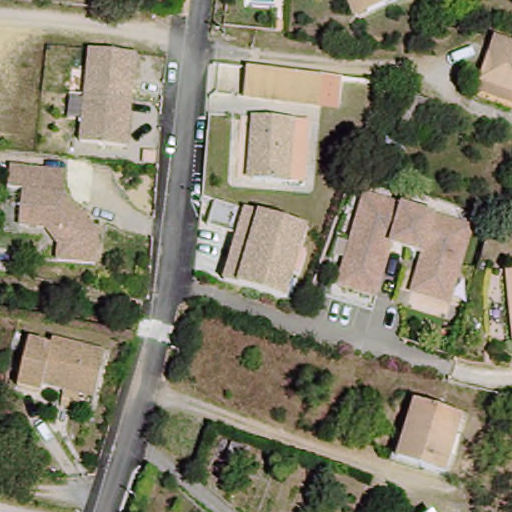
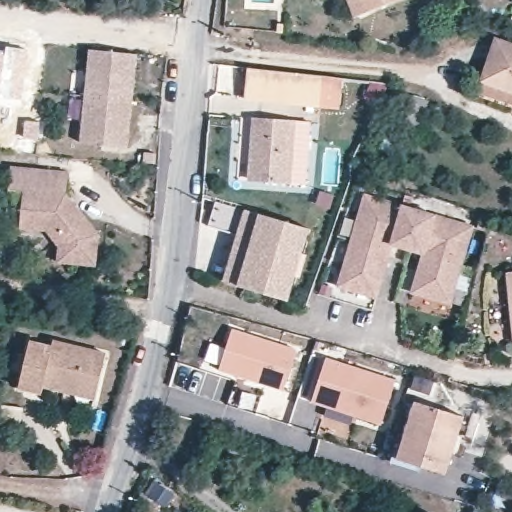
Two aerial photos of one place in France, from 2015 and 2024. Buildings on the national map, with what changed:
unchanged [(337,0),(410,0),(360,19),(345,24),(337,0)]
unchanged [(482,35),(512,43),(512,91),(471,79),(482,35)]
new [(4,51),(5,46),(28,49),(22,102),(0,99),(0,51),(4,51)]
unchanged [(135,49),(128,146),(80,142),(90,47),(135,49)]
unchanged [(325,77),(322,109),(243,102),(245,71),(325,77)]
unchanged [(301,185),(267,183),(268,150),(261,149),(261,120),(301,120),(301,185)]
unchanged [(65,202),(100,239),(95,272),(60,267),(60,253),(45,236),(20,232),(25,196),(10,195),(12,174),(67,178),(65,202)]
unchanged [(367,192),(473,229),(446,305),(408,292),(422,254),(391,243),(373,295),(335,282),(367,192)]
unchanged [(308,228),(287,298),(223,280),(234,234),(208,223),(216,197),(245,206),(308,228)]
new [(218,370),(231,328),(295,348),(283,391),(218,370)]
unchanged [(67,401),(68,393),(47,390),(45,397),(22,392),(32,346),(55,350),(56,342),(110,353),(100,400),(98,407),(67,401)]
new [(325,357),(395,380),(381,425),(310,403),(325,357)]
unchanged [(445,471),(396,459),(410,402),(459,414),(445,471)]
unchanged [(431,512),(432,511),(433,512),(431,512)]

